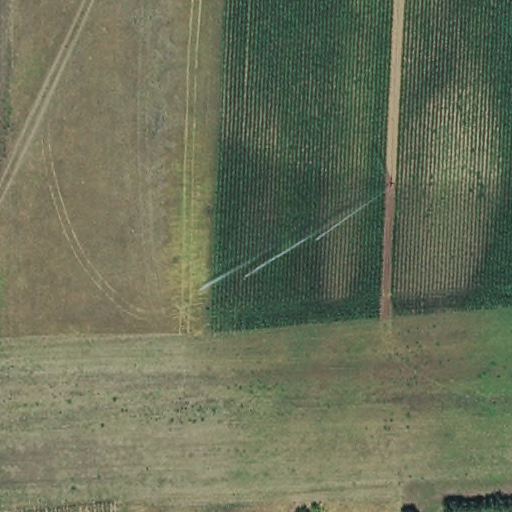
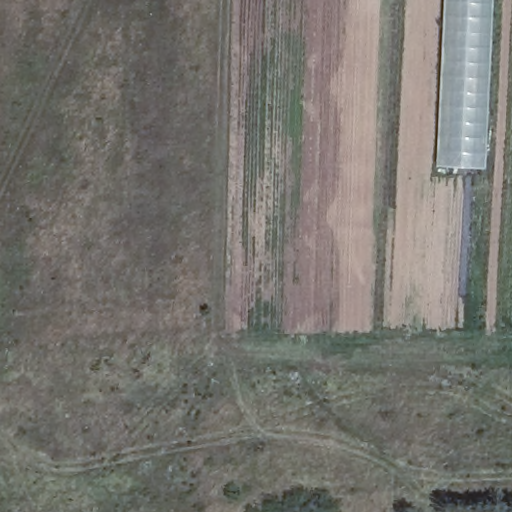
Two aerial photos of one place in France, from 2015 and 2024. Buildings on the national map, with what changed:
new [(494,0),(486,167),(436,165),(443,0),(494,0)]

